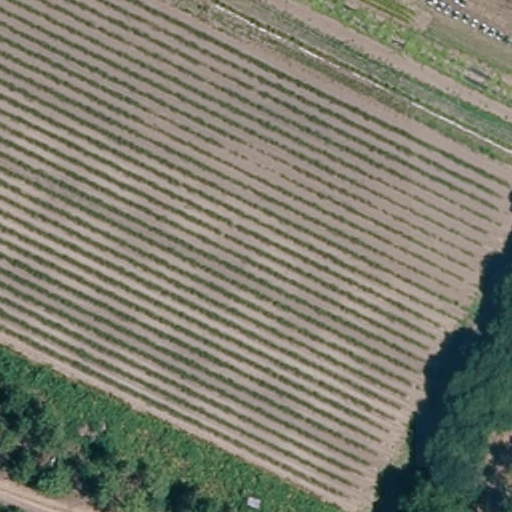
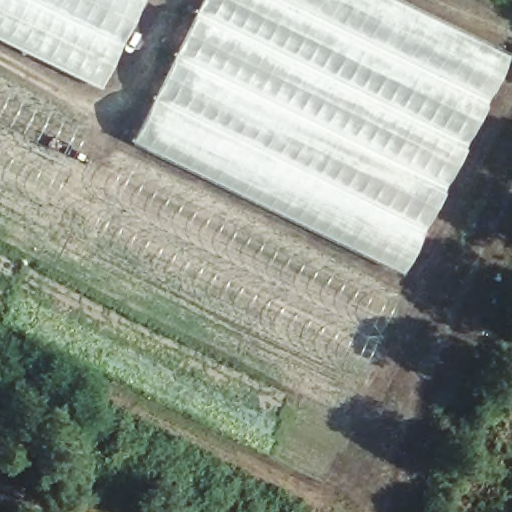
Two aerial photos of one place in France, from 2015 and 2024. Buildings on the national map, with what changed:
new [(101,86),(0,37),(0,0),(142,0),(144,1),(101,86)]
new [(509,56),(404,272),(131,141),(200,0),(394,0),(509,56)]

